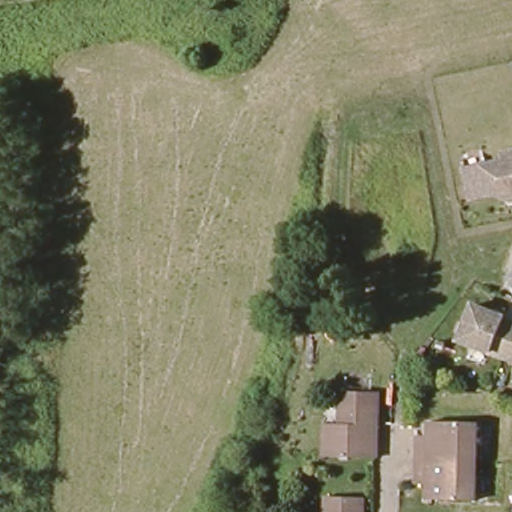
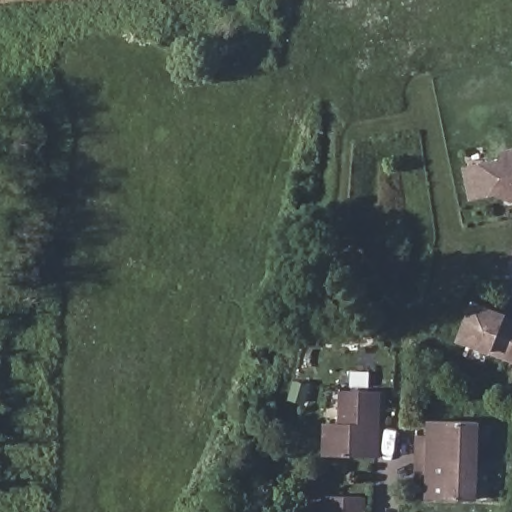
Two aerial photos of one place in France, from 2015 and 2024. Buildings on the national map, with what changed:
unchanged [(510,193),(474,200),(467,168),(507,159),(506,153),(512,151),(512,199),(510,193)]
unchanged [(461,338),(476,299),(510,312),(509,315),(512,316),(512,357),(461,338)]
unchanged [(323,456),(324,425),(340,426),(342,391),(378,395),(379,423),(378,460),(323,456)]
unchanged [(430,425),(481,428),(478,466),(427,461),(430,425)]
unchanged [(417,480),(420,461),(427,461),(478,466),(476,505),(427,502),(427,490),(415,488),(417,480)]
unchanged [(362,500),(362,512),(327,512),(327,498),(362,500)]

